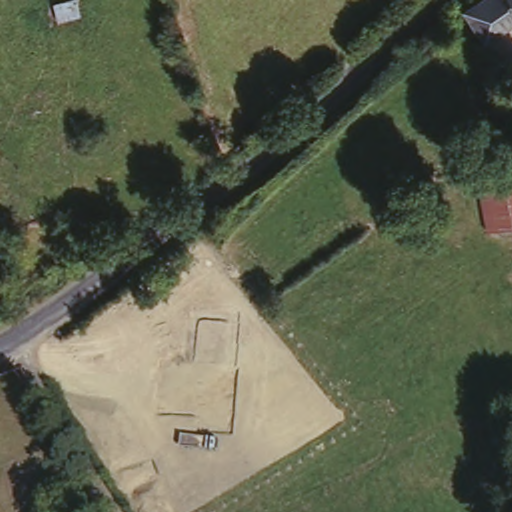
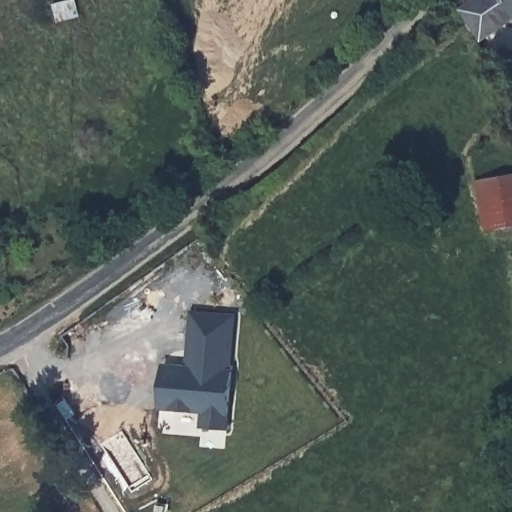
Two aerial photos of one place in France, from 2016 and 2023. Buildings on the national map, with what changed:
unchanged [(512,0),(512,23),(464,55),(445,25),(480,4),(477,0),(512,0)]
unchanged [(475,178),(512,172),(512,225),(485,230),(475,178)]
new [(188,365),(189,357),(192,310),(234,313),(230,368),(232,368),(227,426),(202,425),(203,409),(161,405),(165,363),(188,365)]

